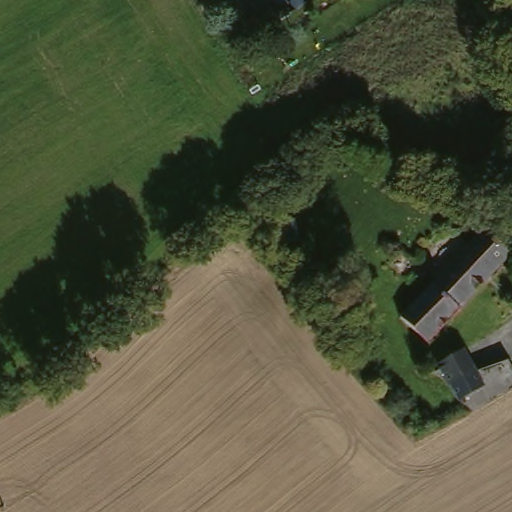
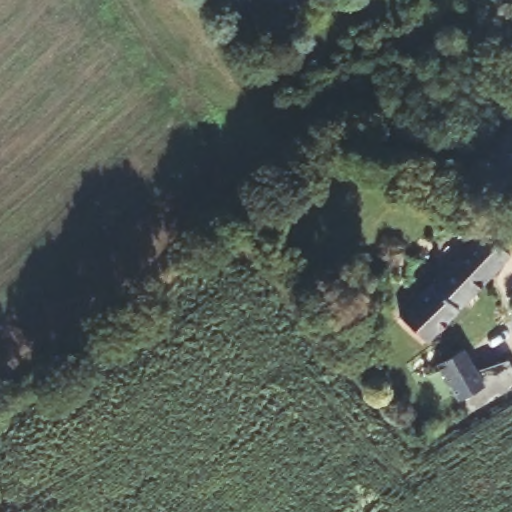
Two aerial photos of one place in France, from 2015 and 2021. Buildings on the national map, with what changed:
unchanged [(283,3),(281,0),(287,0),(283,3)]
unchanged [(460,310),(426,342),(400,318),(482,231),(509,256),(460,310)]
unchanged [(472,370),(504,359),(512,372),(512,385),(475,407),(463,415),(432,362),(459,348),(472,370)]

